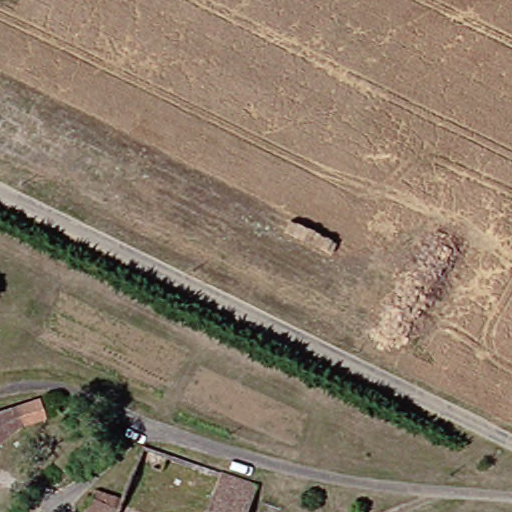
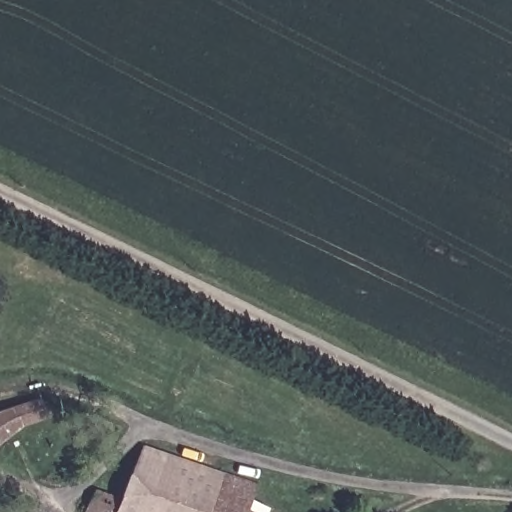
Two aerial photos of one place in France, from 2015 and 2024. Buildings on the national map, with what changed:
unchanged [(45,400),(51,419),(28,426),(0,448),(0,413),(45,400)]
new [(143,445),(224,472),(257,484),(246,512),(86,512),(96,490),(122,499),(143,445)]
demolished [(115,512),(86,512),(94,490),(120,501),(115,512)]

